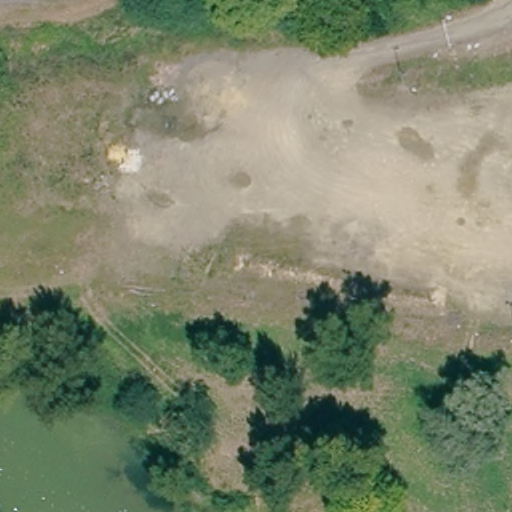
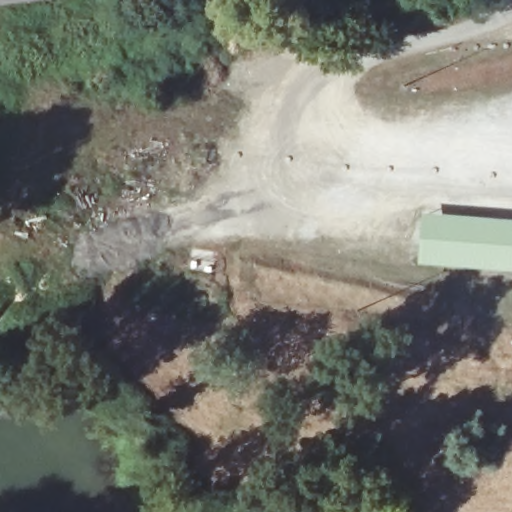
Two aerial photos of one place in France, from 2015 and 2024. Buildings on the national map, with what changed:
new [(478,214),(512,217),(512,271),(417,263),(422,212),(478,214)]

